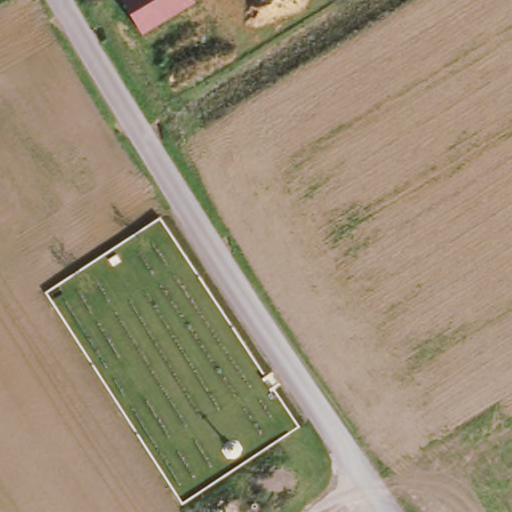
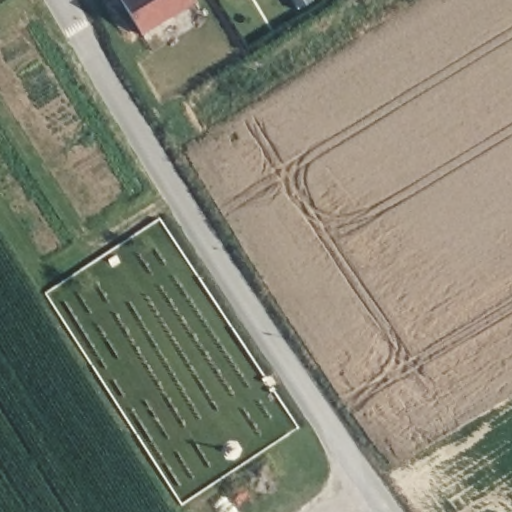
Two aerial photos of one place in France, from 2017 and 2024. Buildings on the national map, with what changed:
unchanged [(142,35),(122,0),(193,0),(195,4),(142,35)]

